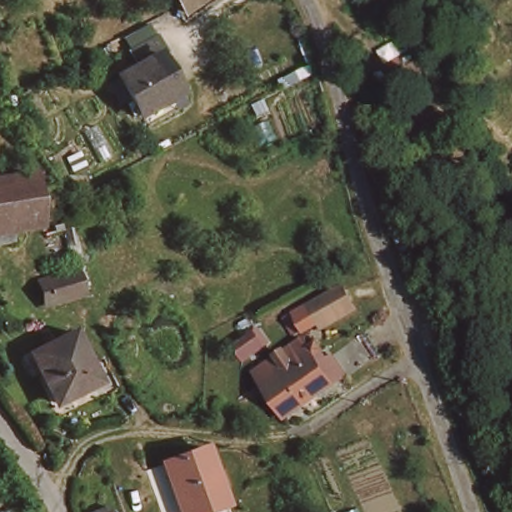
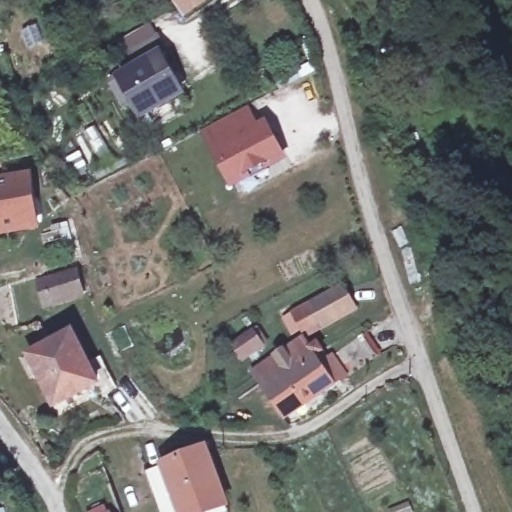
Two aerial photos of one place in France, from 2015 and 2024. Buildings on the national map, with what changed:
unchanged [(179,0),(205,0),(188,12),(179,0)]
unchanged [(173,91),(142,109),(122,72),(141,61),(133,46),(125,33),(150,20),(157,32),(158,32),(167,47),(160,50),(169,66),(180,87),(173,91)]
unchanged [(118,92),(112,79),(120,74),(127,87),(118,92)]
new [(201,131),(250,107),(258,124),(267,120),(287,159),(231,188),(201,131)]
unchanged [(38,211),(0,216),(0,170),(32,165),(38,211)]
unchanged [(39,281),(77,271),(82,292),(45,304),(39,281)]
unchanged [(342,286),(355,309),(322,327),(310,304),(342,286)]
unchanged [(55,397),(28,346),(67,327),(85,359),(96,353),(111,382),(99,388),(94,378),(55,397)]
unchanged [(265,388),(254,370),(302,338),(308,347),(315,343),(320,351),(319,352),(324,360),(331,355),(360,335),(375,357),(347,378),(345,377),(339,382),(336,377),(330,381),(283,413),(265,388)]
unchanged [(206,448),(225,503),(201,512),(181,512),(163,464),(206,448)]

